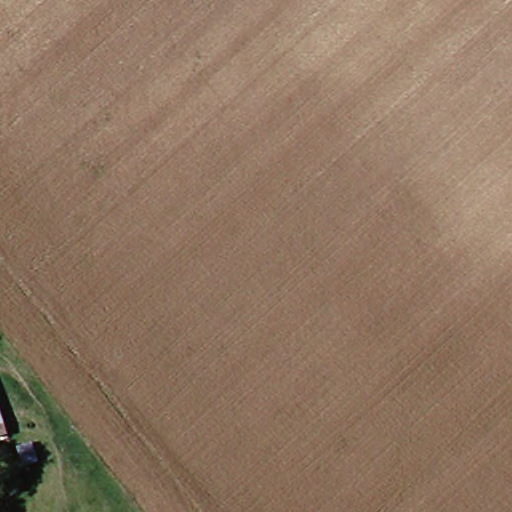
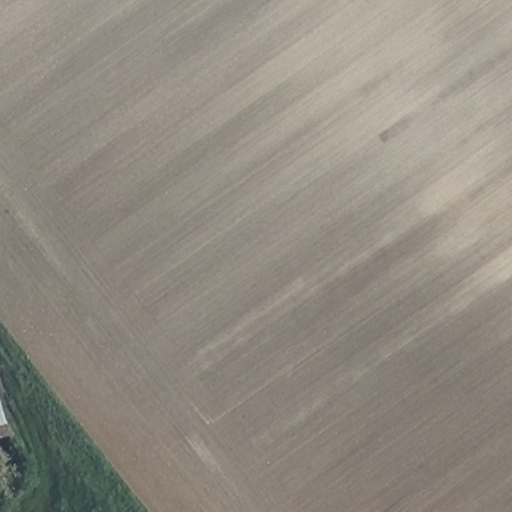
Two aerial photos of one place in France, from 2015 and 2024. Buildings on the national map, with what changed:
unchanged [(0,432),(0,382),(19,424),(0,432)]

